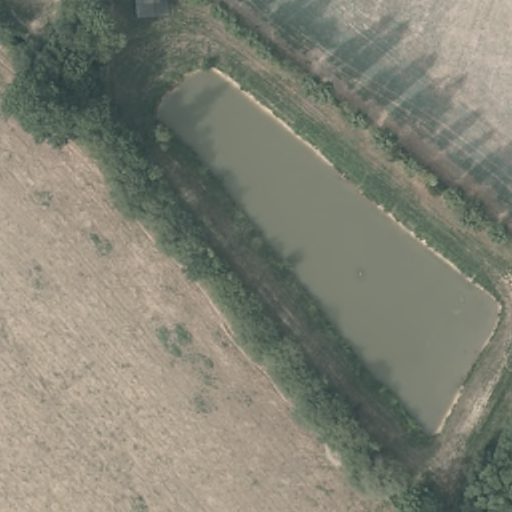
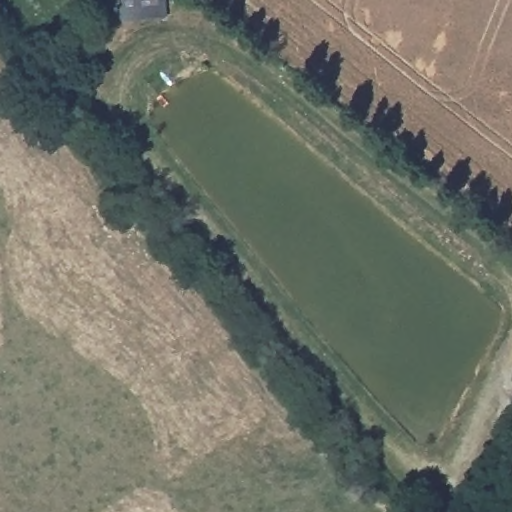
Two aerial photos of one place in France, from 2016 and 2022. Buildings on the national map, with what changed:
unchanged [(133,22),(132,0),(166,0),(167,18),(133,22)]

